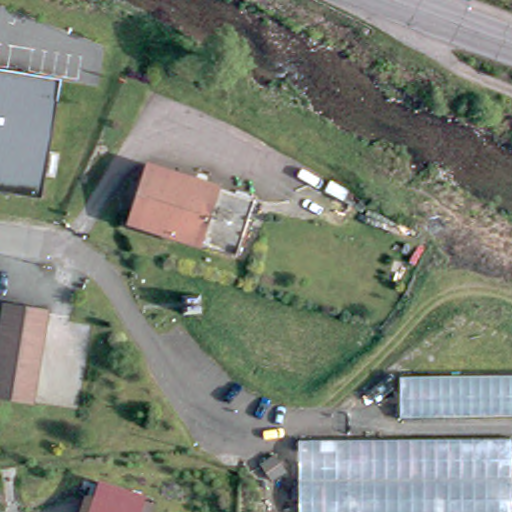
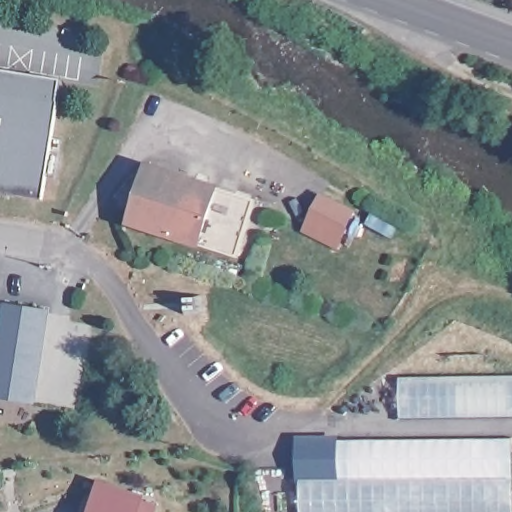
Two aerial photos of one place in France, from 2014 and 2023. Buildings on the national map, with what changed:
unchanged [(58,106),(42,204),(0,196),(0,71),(60,81),(58,106)]
unchanged [(239,253),(131,218),(148,162),(257,196),(239,253)]
new [(356,211),(337,249),(302,232),(321,193),(356,211)]
unchanged [(0,399),(0,323),(2,306),(44,312),(34,404),(0,399)]
unchanged [(512,374),(512,418),(402,419),(401,376),(512,374)]
unchanged [(511,435),(511,465),(512,501),(512,512),(299,512),(298,451),(298,439),(511,435)]
unchanged [(298,476),(284,485),(276,471),(288,462),(298,476)]
unchanged [(146,497),(140,512),(83,512),(89,494),(101,499),(106,483),(146,497)]

